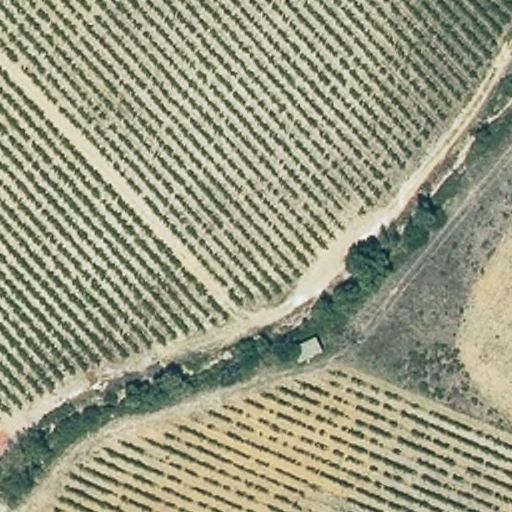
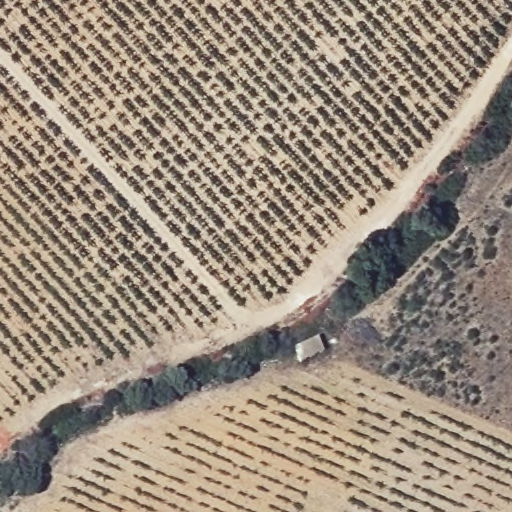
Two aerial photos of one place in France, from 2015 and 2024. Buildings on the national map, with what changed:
unchanged [(313,339),(317,353),(297,361),(292,347),(313,339)]

